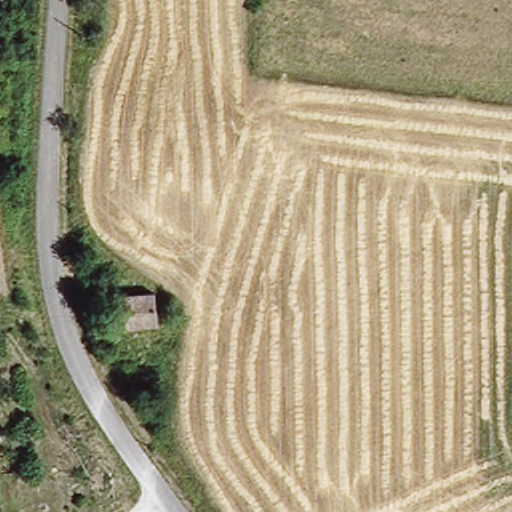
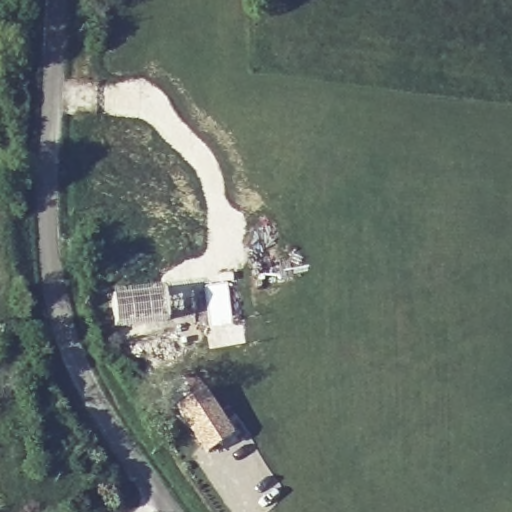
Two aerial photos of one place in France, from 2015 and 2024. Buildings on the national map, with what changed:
unchanged [(114,326),(112,289),(150,287),(152,324),(114,326)]
new [(204,455),(174,410),(204,391),(232,435),(204,455)]

